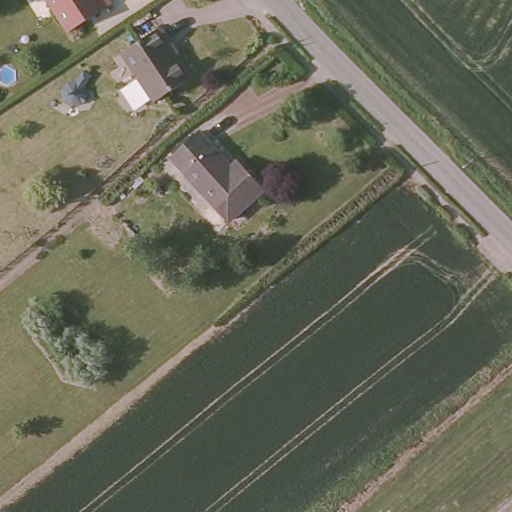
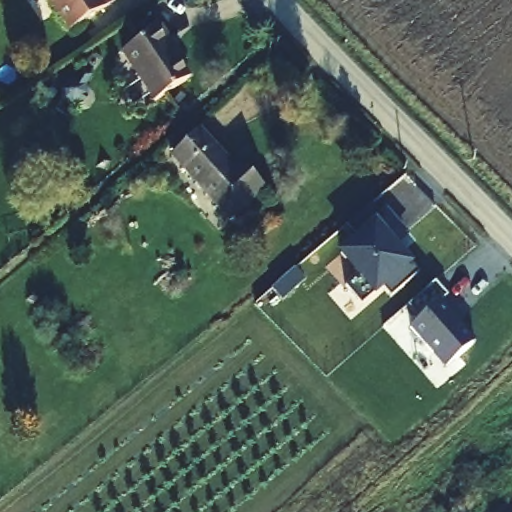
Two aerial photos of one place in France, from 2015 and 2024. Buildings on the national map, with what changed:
unchanged [(109,1),(65,33),(43,0),(108,0),(109,1)]
unchanged [(164,47),(186,80),(153,102),(120,55),(157,28),(169,43),(164,47)]
unchanged [(269,189),(234,219),(177,154),(206,132),(236,167),(245,161),(269,189)]
new [(372,295),(362,305),(345,285),(356,276),(336,253),(349,241),(341,231),(372,205),(379,212),(384,208),(409,235),(397,245),(414,264),(420,271),(391,296),(385,289),(375,298),(372,295)]
new [(409,329),(420,319),(408,306),(435,282),(447,295),(439,302),(474,343),(444,369),(409,329)]

